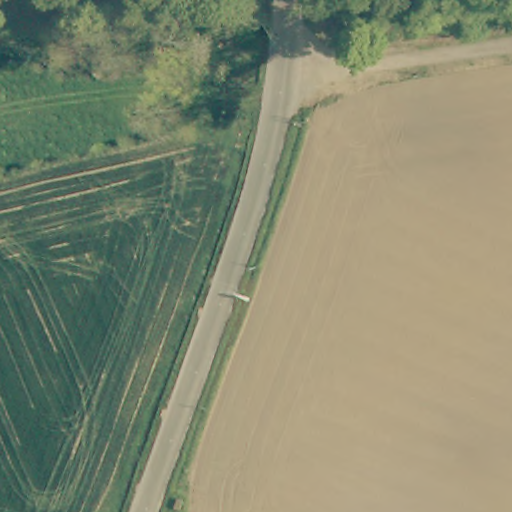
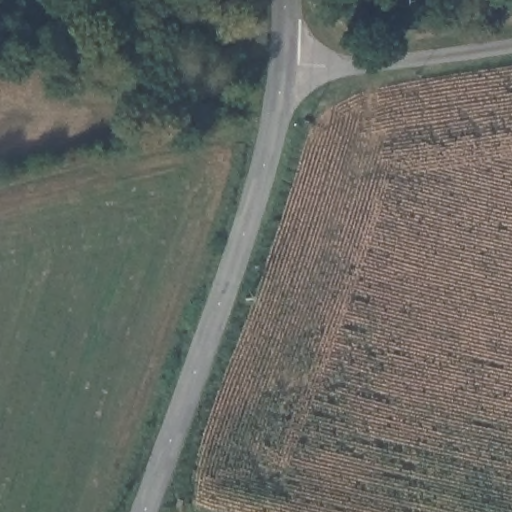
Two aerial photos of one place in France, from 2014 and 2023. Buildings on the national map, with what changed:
[]

